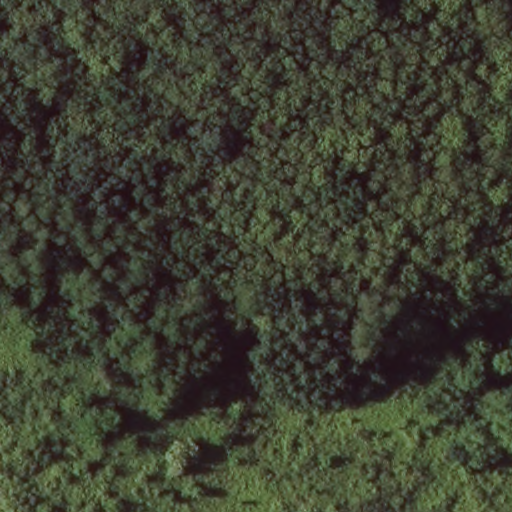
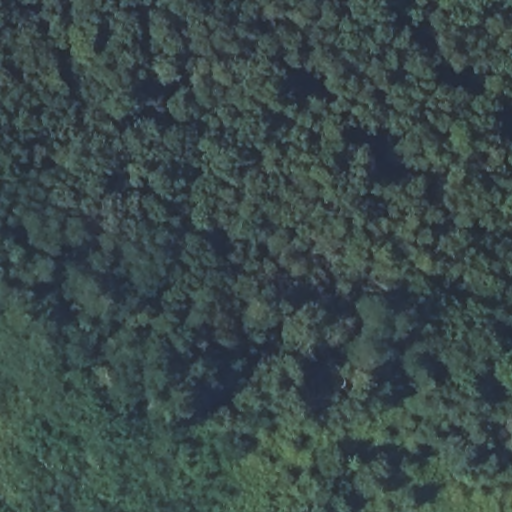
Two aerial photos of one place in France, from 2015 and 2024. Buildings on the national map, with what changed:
[]

